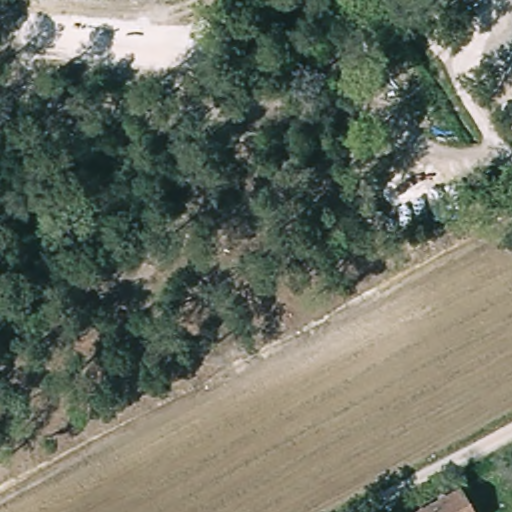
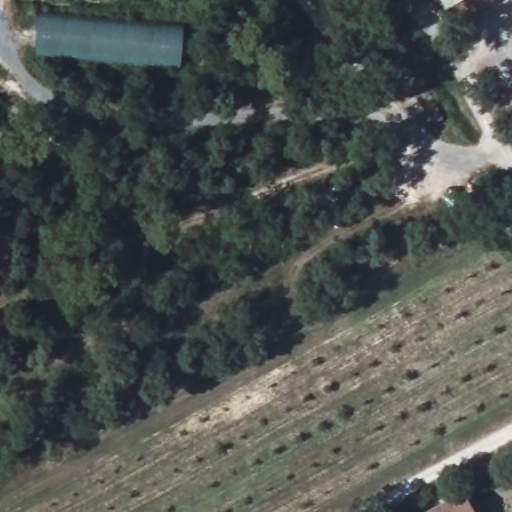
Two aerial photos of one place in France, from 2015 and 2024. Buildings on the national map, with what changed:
unchanged [(434,12),(430,0),(461,0),(434,12)]
new [(32,55),(35,10),(183,22),(179,68),(32,55)]
unchanged [(479,512),(417,512),(466,487),(479,512)]

